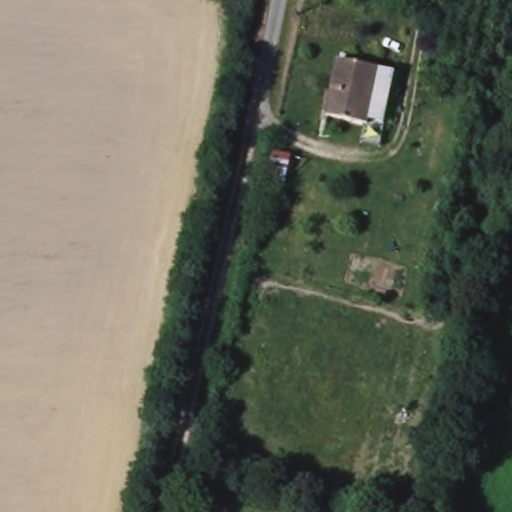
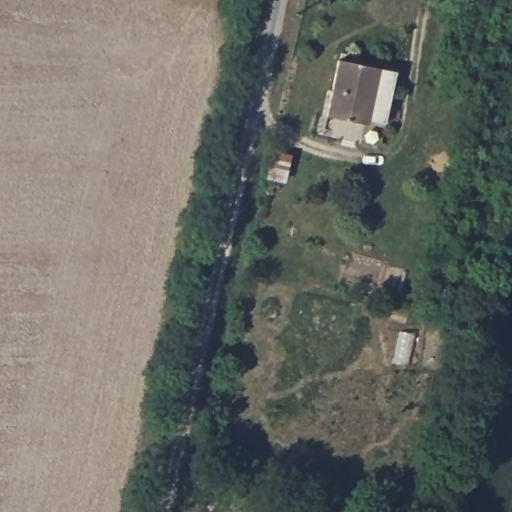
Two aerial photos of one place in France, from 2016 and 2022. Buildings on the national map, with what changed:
unchanged [(328,119),(342,60),(397,75),(382,132),(328,119)]

